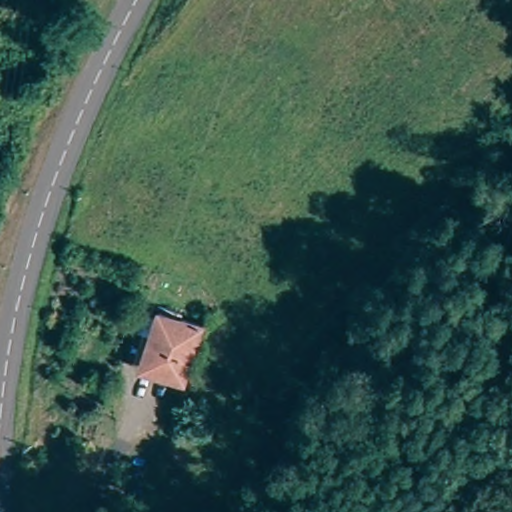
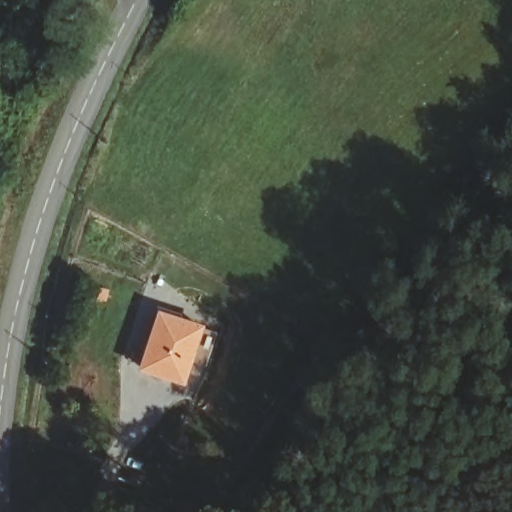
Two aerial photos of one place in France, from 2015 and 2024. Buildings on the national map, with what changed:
unchanged [(176,382),(141,366),(163,318),(198,334),(176,382)]

